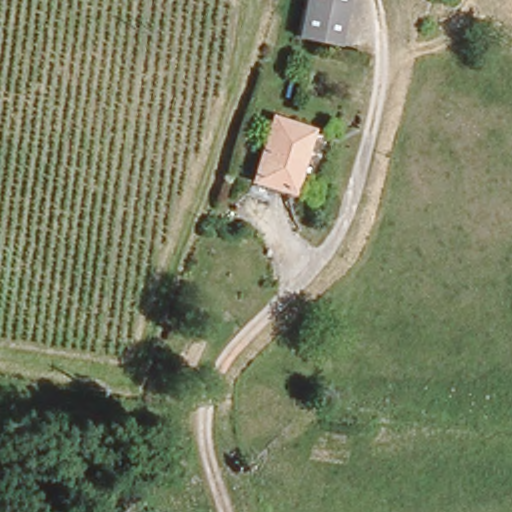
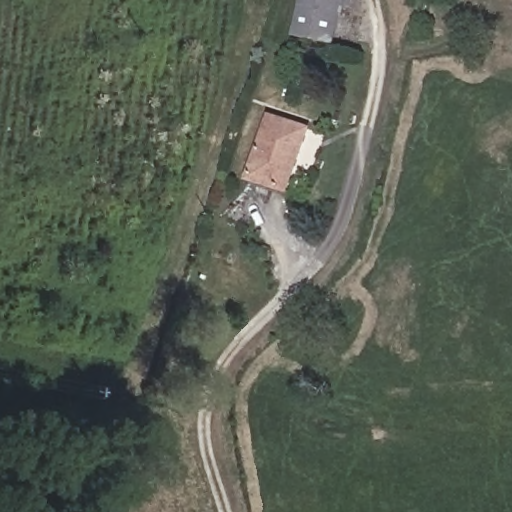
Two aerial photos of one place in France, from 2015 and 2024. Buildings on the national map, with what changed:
unchanged [(342,11),(334,41),(292,29),(300,0),(342,11)]
unchanged [(346,0),(342,11),(300,0),(346,0)]
unchanged [(244,174),(266,110),(311,126),(288,190),(244,174)]

